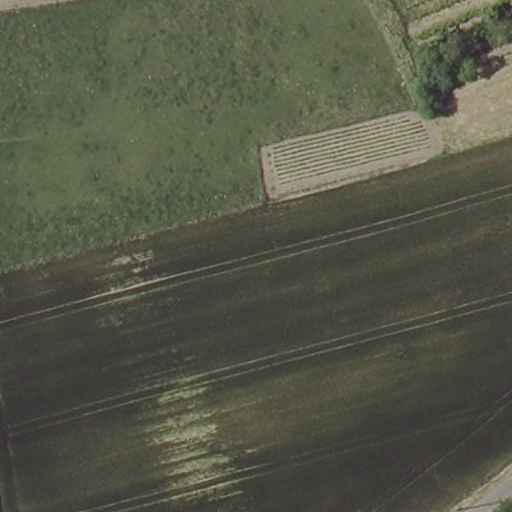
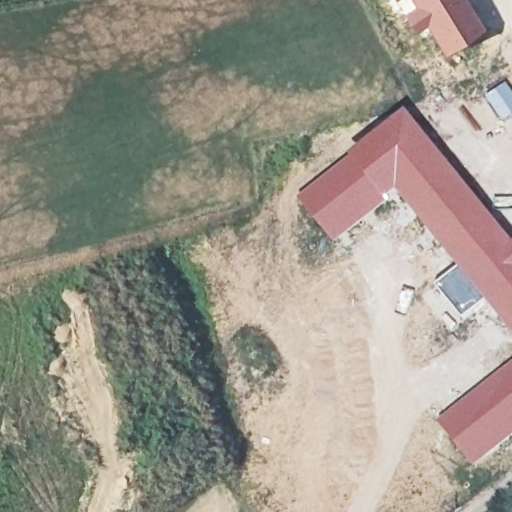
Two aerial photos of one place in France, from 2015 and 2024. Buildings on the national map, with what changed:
new [(443,51),(424,24),(414,31),(401,10),(394,0),(468,0),(484,26),(443,51)]
new [(506,82),(512,90),(512,117),(504,123),(486,98),(506,82)]
new [(408,112),(512,238),(512,334),(487,303),(459,269),(399,197),(389,205),(353,158),(408,112)]
new [(353,158),(389,205),(333,245),(299,202),(353,158)]
new [(459,269),(487,303),(464,321),(437,287),(459,269)]
new [(474,468),(440,426),(504,371),(512,364),(512,438),(474,468)]

